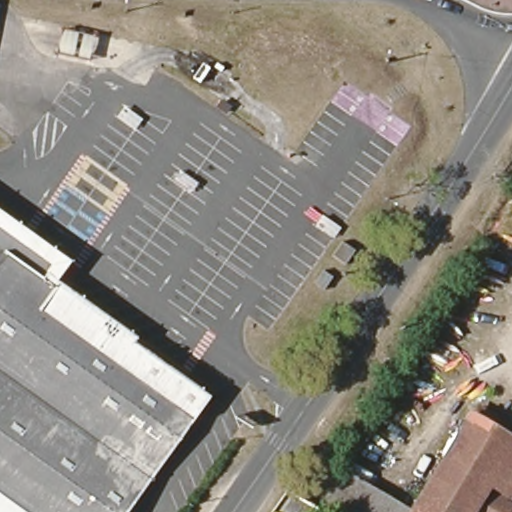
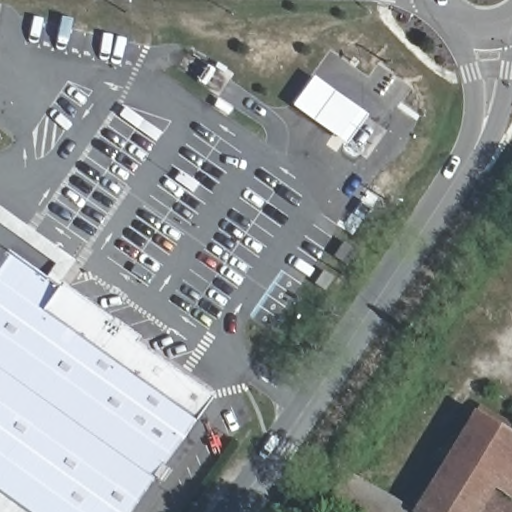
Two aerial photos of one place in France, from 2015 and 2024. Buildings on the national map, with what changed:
new [(312,76),(367,116),(347,144),(291,106),(312,76)]
unchanged [(73,260),(62,278),(13,243),(0,261),(0,209),(73,260)]
demolished [(512,243),(498,236),(512,211),(512,243)]
unchanged [(62,278),(218,391),(128,512),(26,512),(0,494),(0,261),(13,243),(62,278)]
demolished [(378,364),(368,380),(353,368),(364,352),(378,364)]
unchanged [(387,460),(382,468),(416,492),(467,414),(512,446),(512,485),(505,497),(483,484),(464,512),(353,512),(332,497),(369,449),(387,460)]
unchanged [(512,512),(464,512),(483,484),(505,497),(512,502),(512,512)]
unchanged [(26,512),(0,512),(0,494),(26,512)]

